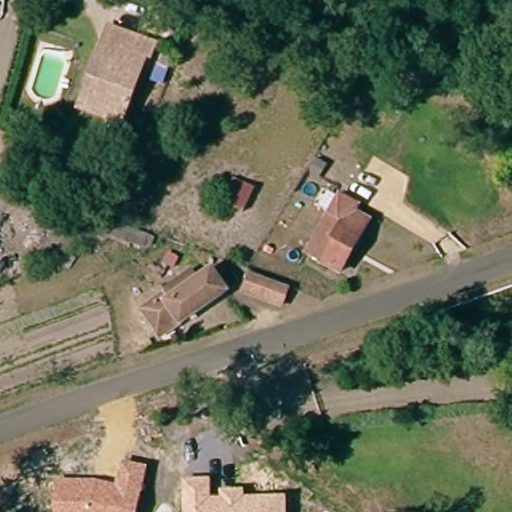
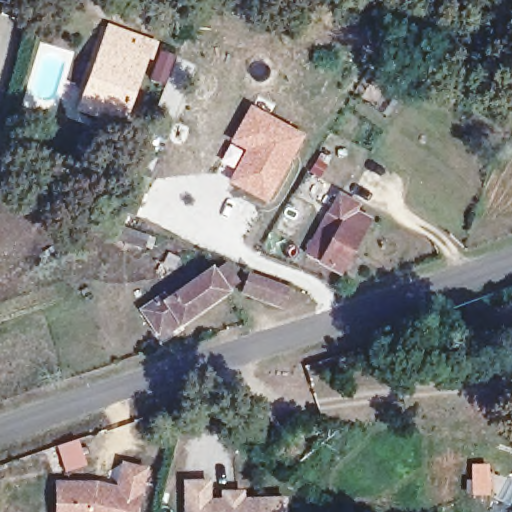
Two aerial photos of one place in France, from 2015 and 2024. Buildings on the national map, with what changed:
unchanged [(104,125),(84,116),(77,114),(93,79),(111,35),(156,55),(150,68),(147,66),(122,124),(119,131),(104,125)]
new [(158,53),(155,51),(155,49),(175,57),(165,85),(149,79),(158,53)]
new [(249,105),(304,135),(267,204),(228,182),(234,169),(220,161),(249,105)]
unchanged [(6,162),(0,161),(0,132),(11,135),(6,162)]
unchanged [(355,206),(352,212),(367,221),(338,272),(306,255),(340,197),(355,206)]
unchanged [(165,330),(150,308),(170,295),(174,300),(220,266),(221,268),(231,262),(242,277),(233,285),(235,287),(186,321),(167,335),(165,330)]
unchanged [(294,284),(288,302),(247,288),(254,270),(294,284)]
unchanged [(55,512),(55,481),(95,480),(116,485),(121,462),(149,468),(138,512),(55,512)]
unchanged [(220,498),(220,490),(246,490),(246,498),(285,495),(286,512),(183,512),(182,481),(210,480),(211,497),(220,498)]

